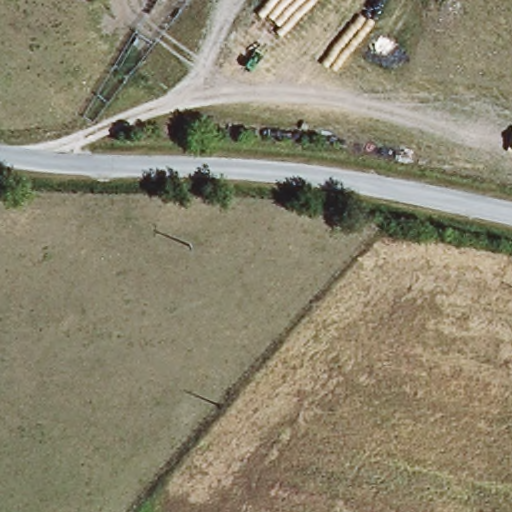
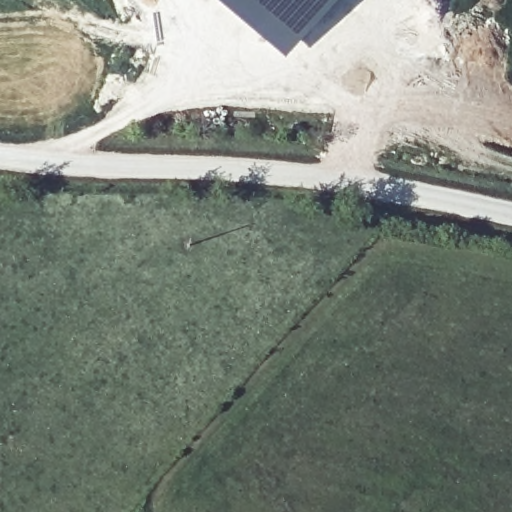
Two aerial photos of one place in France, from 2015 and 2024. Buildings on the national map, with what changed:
new [(283,55),(216,0),(331,0),(283,55)]

